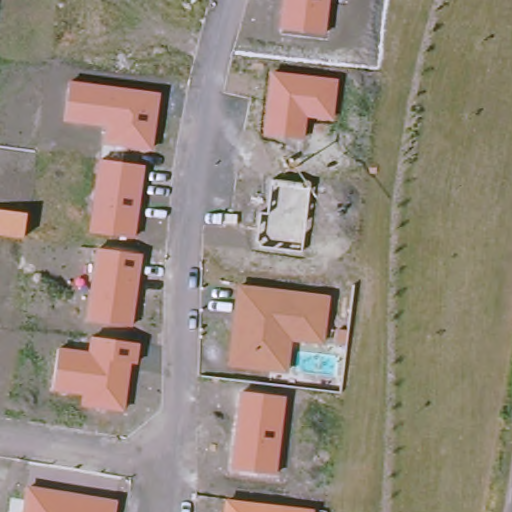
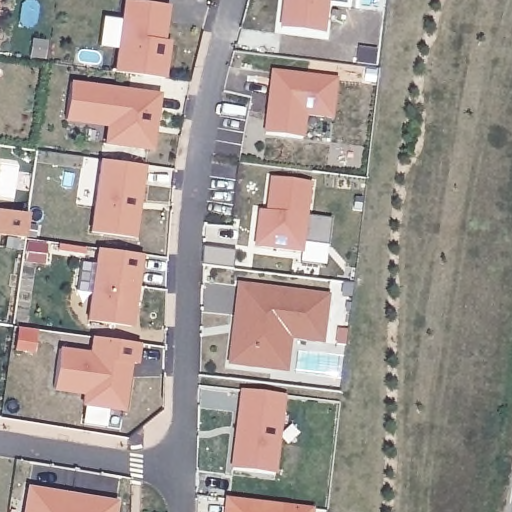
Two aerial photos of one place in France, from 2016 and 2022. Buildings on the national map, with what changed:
new [(115,70),(123,0),(128,0),(168,4),(164,40),(169,41),(165,78),(115,70)]
unchanged [(326,33),(278,26),(282,0),(330,0),(326,33)]
unchanged [(338,79),(334,120),(306,117),(304,141),(260,135),(270,71),(338,79)]
unchanged [(160,94),(153,151),(103,146),(105,125),(64,119),(70,81),(160,94)]
unchanged [(145,166),(135,236),(87,230),(97,160),(145,166)]
unchanged [(310,184),(302,251),(260,246),(257,236),(260,210),(266,211),(270,179),(310,184)]
unchanged [(142,256),(131,329),(85,321),(96,248),(142,256)]
unchanged [(328,296),(323,345),(292,341),(287,375),(227,366),(237,286),(328,296)]
unchanged [(88,351),(90,337),(140,345),(136,365),(130,365),(124,412),(80,405),(82,395),(52,390),(60,347),(88,351)]
unchanged [(285,397),(275,474),(232,467),(242,390),(285,397)]
unchanged [(116,512),(23,512),(27,486),(117,502),(116,512)]
unchanged [(313,512),(223,512),(224,499),(313,510),(313,512)]

